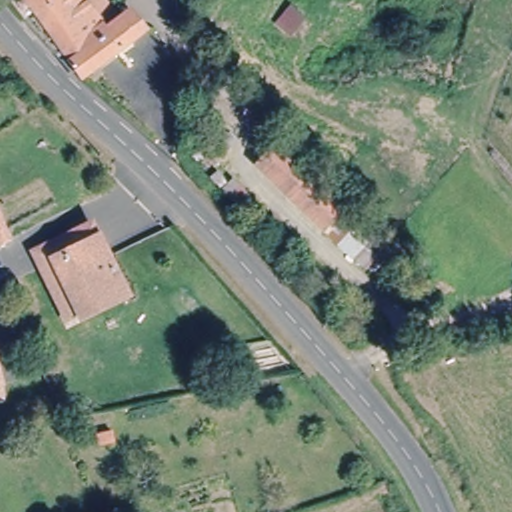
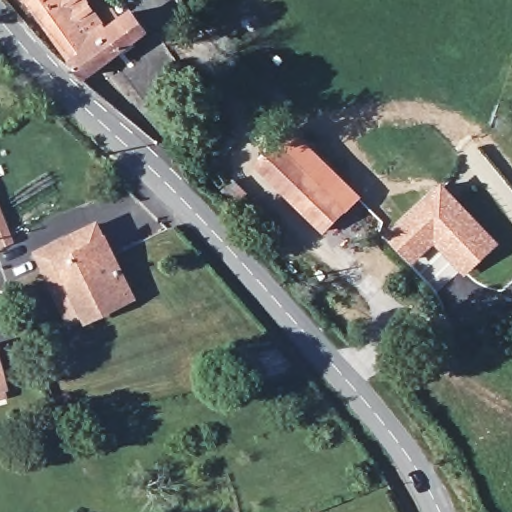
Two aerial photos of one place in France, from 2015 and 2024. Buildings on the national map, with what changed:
unchanged [(131,16),(146,37),(83,84),(24,0),(99,0),(117,26),(131,16)]
new [(255,167),(284,139),(350,209),(374,237),(386,252),(366,270),(356,258),(353,262),(337,246),(322,232),(255,167)]
demolished [(316,224),(279,186),(301,164),(338,202),(316,224)]
new [(501,243),(463,276),(434,245),(412,264),(386,236),(441,182),(501,243)]
unchanged [(45,276),(32,250),(89,222),(123,291),(107,298),(66,318),(45,276)]
unchanged [(4,394),(0,395),(0,379),(4,394)]
unchanged [(113,432),(115,442),(98,447),(96,436),(113,432)]

